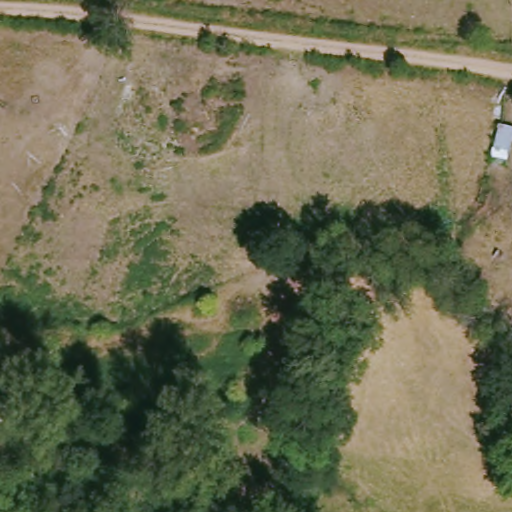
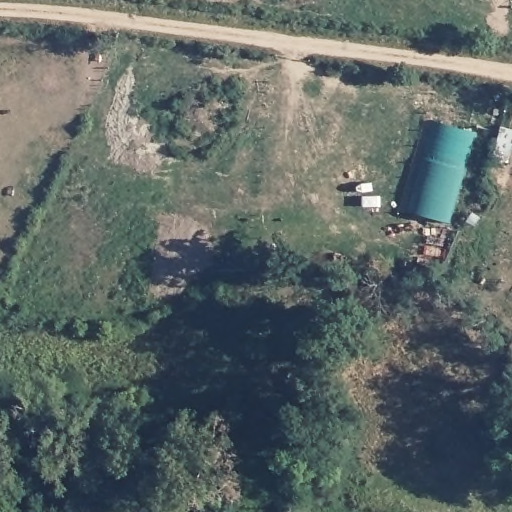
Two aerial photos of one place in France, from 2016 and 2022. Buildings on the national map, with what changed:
new [(433,121),(473,133),(451,221),(410,210),(433,121)]
unchanged [(509,162),(487,156),(497,122),(512,127),(512,154),(509,162)]
unchanged [(141,469),(135,465),(140,459),(145,462),(141,469)]

